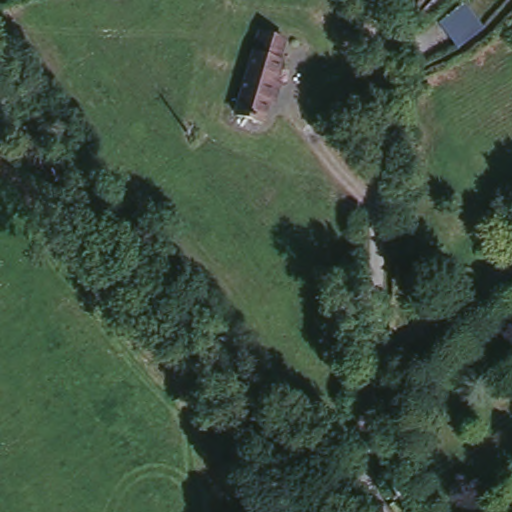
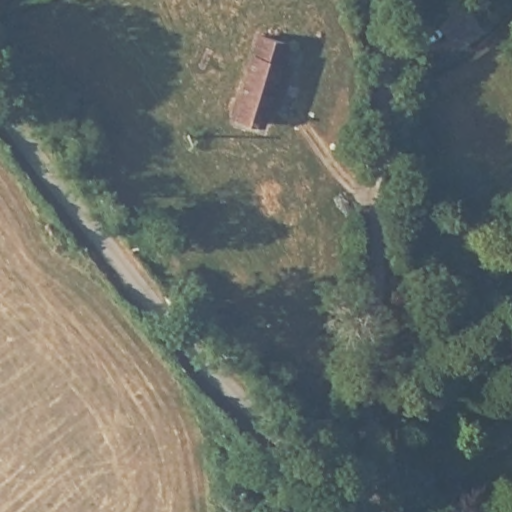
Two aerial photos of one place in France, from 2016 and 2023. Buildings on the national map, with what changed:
unchanged [(457,49),(435,18),(459,0),(468,0),(493,27),(457,49)]
unchanged [(265,25),(292,32),(269,118),(240,110),(265,25)]

